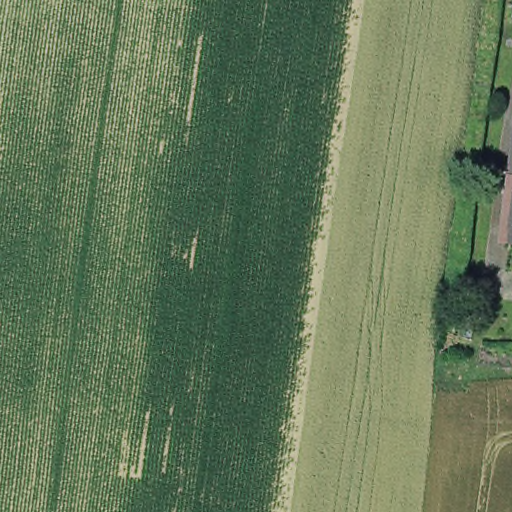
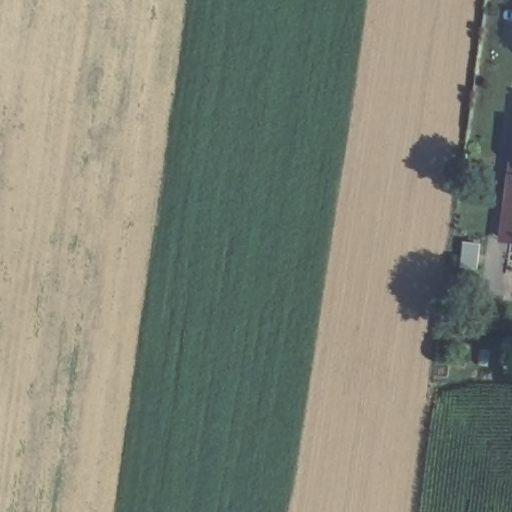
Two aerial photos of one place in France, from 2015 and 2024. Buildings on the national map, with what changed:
unchanged [(502,243),(510,180),(512,157),(512,244),(502,243)]

